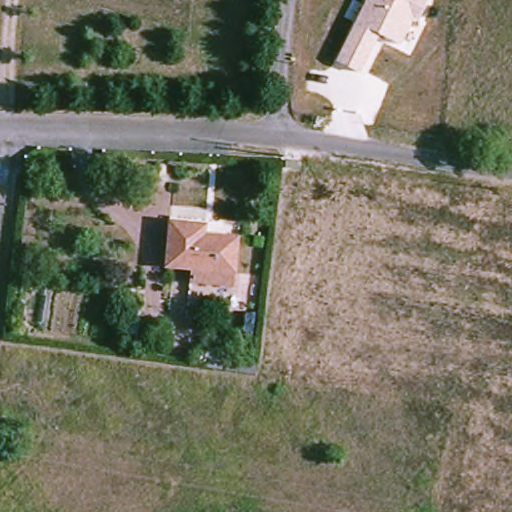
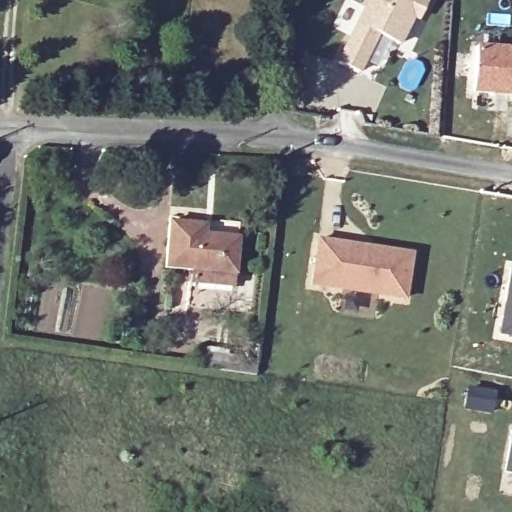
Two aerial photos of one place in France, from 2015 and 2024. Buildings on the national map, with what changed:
unchanged [(418,21),(412,18),(398,46),(377,35),(359,73),(337,62),(367,0),(429,0),(418,21)]
new [(476,48),(512,51),(512,96),(508,95),(497,94),(473,93),(476,48)]
unchanged [(201,226),(200,236),(235,239),(232,275),(189,271),(190,258),(163,255),(166,223),(201,226)]
new [(364,246),(376,248),(412,253),(405,298),(313,284),(319,240),(364,246)]
new [(512,267),(512,337),(498,335),(510,266),(512,267)]
unchanged [(253,365),(251,377),(200,370),(202,358),(253,365)]
new [(512,473),(504,472),(512,429),(512,473)]

